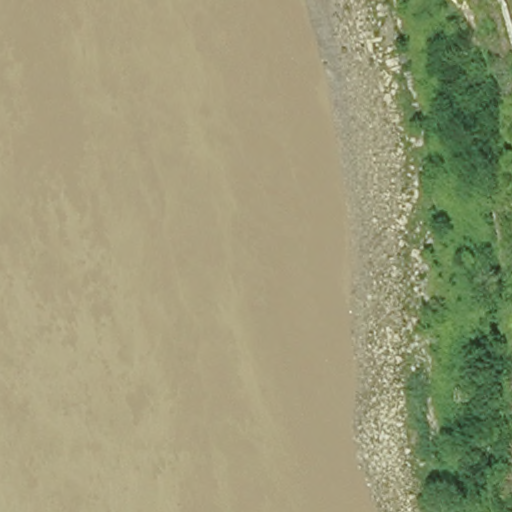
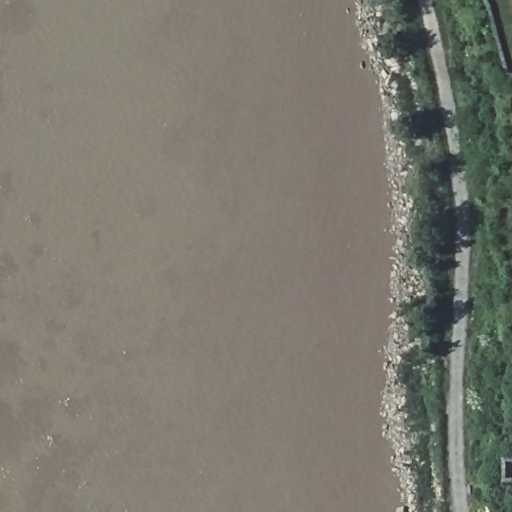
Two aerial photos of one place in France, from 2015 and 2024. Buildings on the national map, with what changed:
[]

